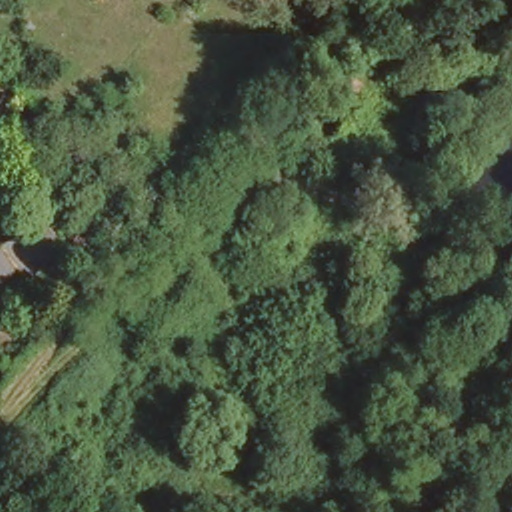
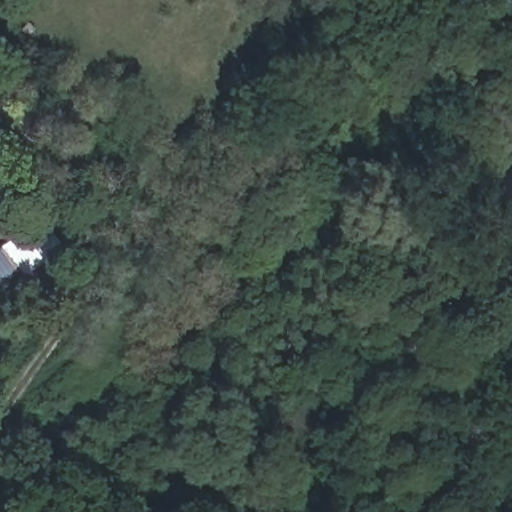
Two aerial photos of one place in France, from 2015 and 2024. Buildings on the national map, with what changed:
unchanged [(31,24),(24,31),(16,24),(24,16),(31,24)]
unchanged [(51,262),(61,270),(32,292),(14,272),(0,283),(0,252),(47,221),(67,252),(51,262)]

